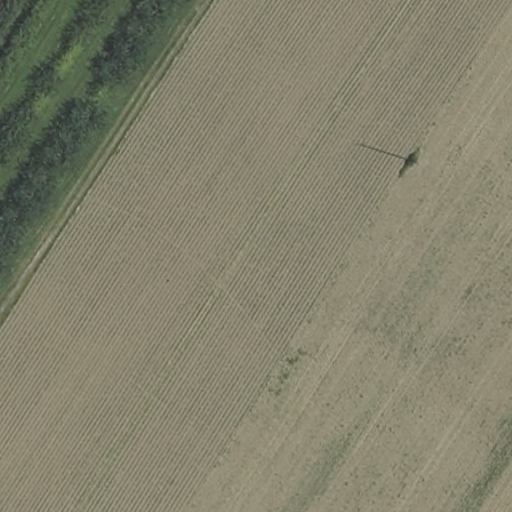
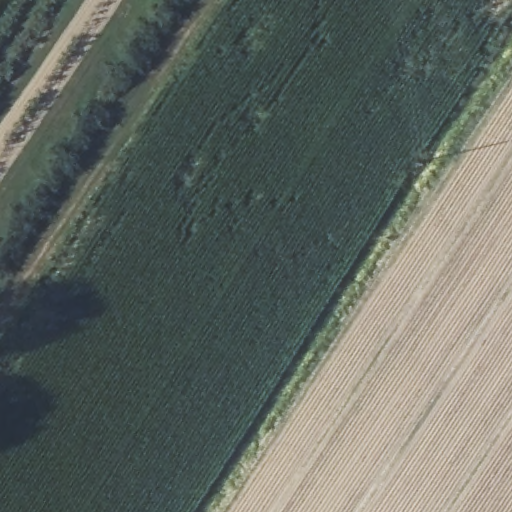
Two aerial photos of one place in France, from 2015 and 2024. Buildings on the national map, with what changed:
[]

